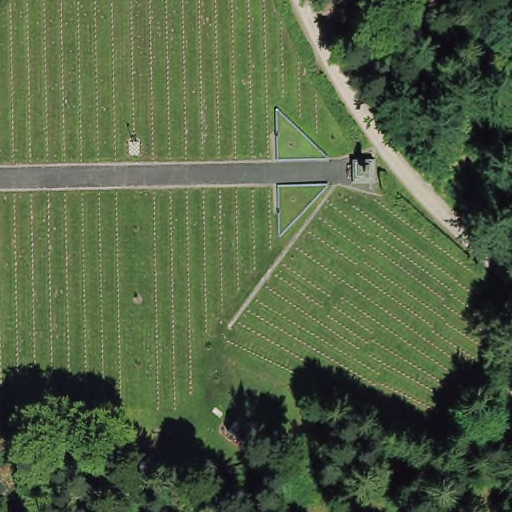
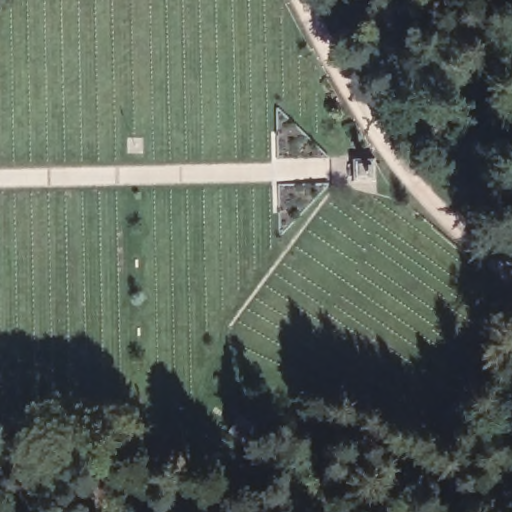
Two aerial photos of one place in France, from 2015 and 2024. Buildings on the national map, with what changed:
unchanged [(237,420),(253,430),(242,447),(227,436),(237,420)]
unchanged [(118,431),(118,422),(146,423),(145,432),(145,440),(117,439),(118,431)]

